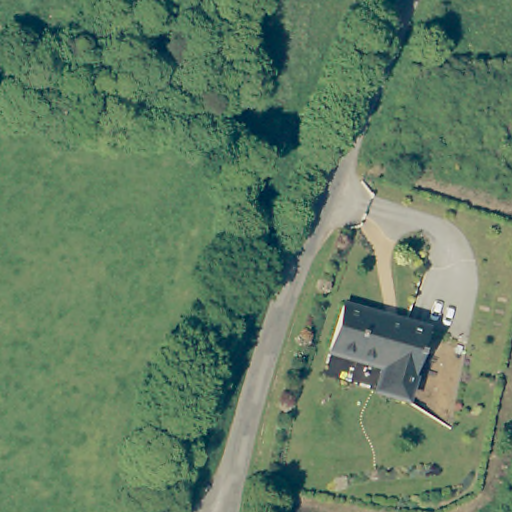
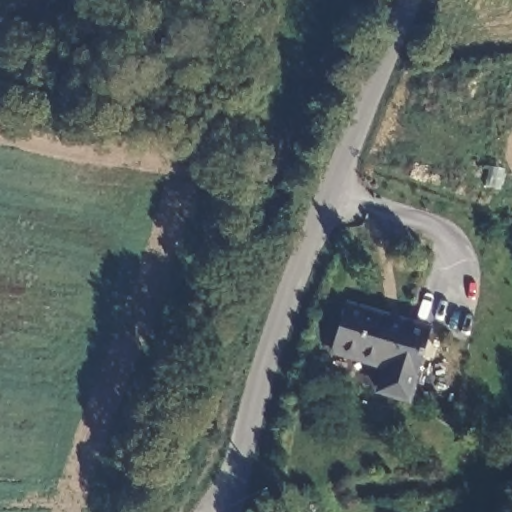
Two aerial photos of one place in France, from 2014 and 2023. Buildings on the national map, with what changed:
unchanged [(428,327),(408,394),(380,386),(388,359),(341,347),(352,305),(428,327)]

